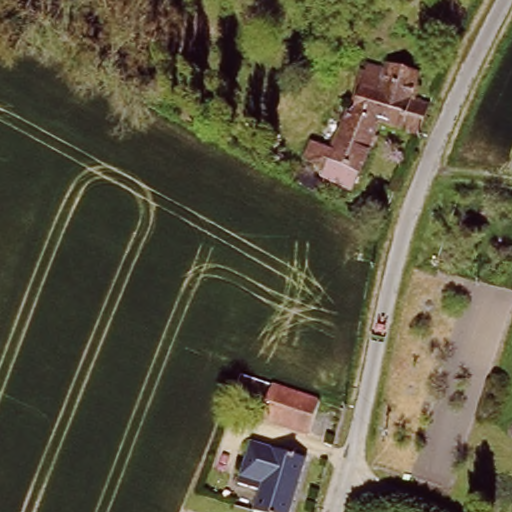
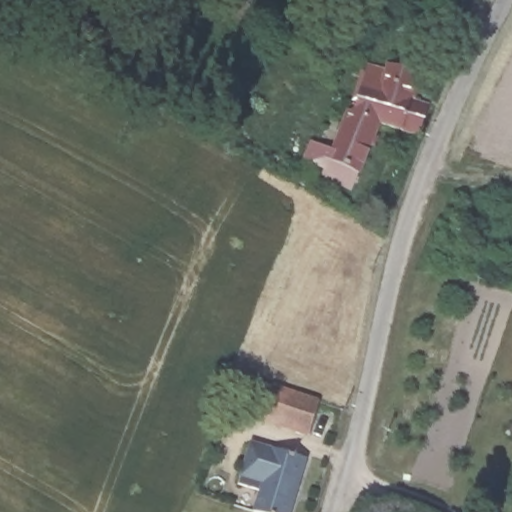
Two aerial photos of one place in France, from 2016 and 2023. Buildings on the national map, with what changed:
unchanged [(420,134),(385,118),(357,190),(322,174),(349,109),(356,111),(374,60),(391,67),(395,58),(425,70),(414,97),(431,104),(420,134)]
unchanged [(295,170),(321,182),(316,194),(290,180),(295,170)]
unchanged [(277,384),(264,418),(245,411),(247,407),(234,402),(245,373),(277,384)]
unchanged [(324,401),(312,435),(264,418),(277,384),(324,401)]
unchanged [(252,436),(307,453),(288,512),(271,512),(252,505),(258,491),(236,482),(239,475),(252,436)]

